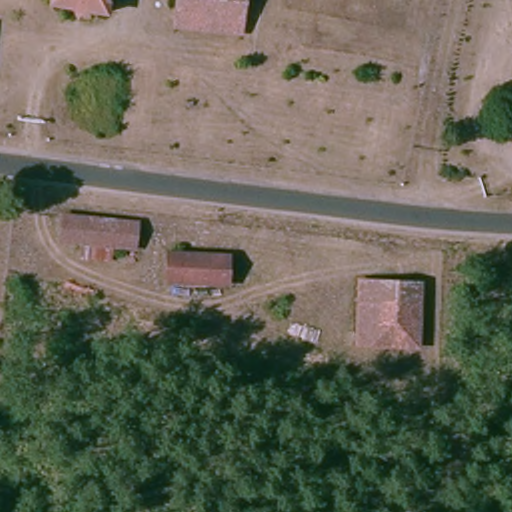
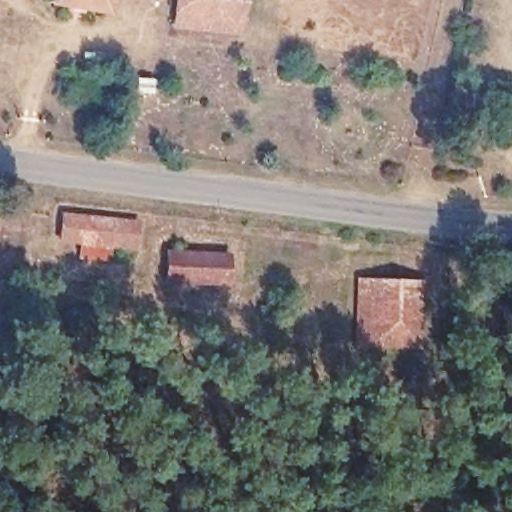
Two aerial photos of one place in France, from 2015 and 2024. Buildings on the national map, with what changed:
unchanged [(105,16),(51,3),(52,0),(109,0),(105,16)]
unchanged [(243,38),(177,27),(182,0),(250,0),(246,20),(243,38)]
unchanged [(61,247),(62,235),(64,213),(140,222),(137,244),(119,243),(119,254),(61,247)]
unchanged [(233,257),(233,284),(169,283),(170,256),(233,257)]
unchanged [(422,283),(419,347),(358,343),(362,278),(422,283)]

